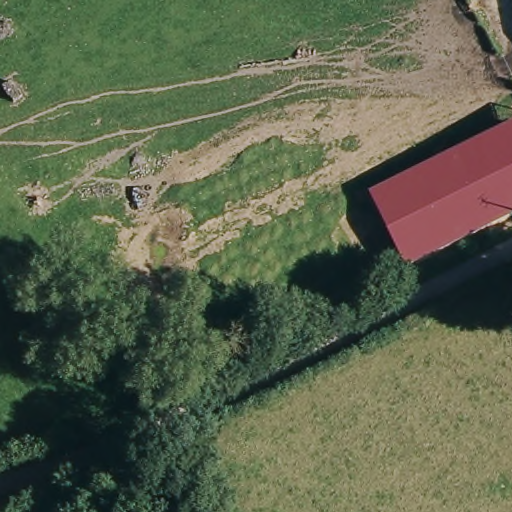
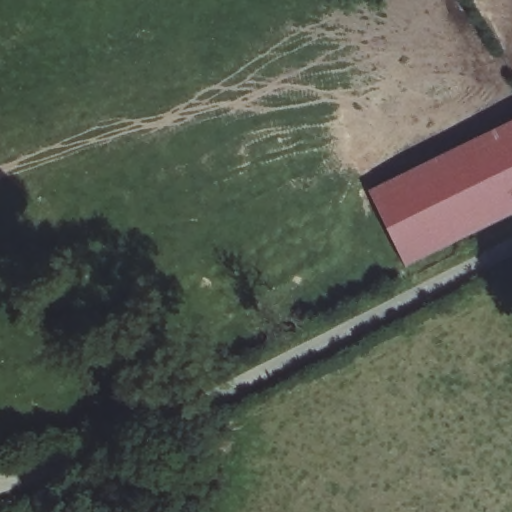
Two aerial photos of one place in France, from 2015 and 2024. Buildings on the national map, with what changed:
unchanged [(512,121),(512,214),(406,265),(369,191),(512,121)]

